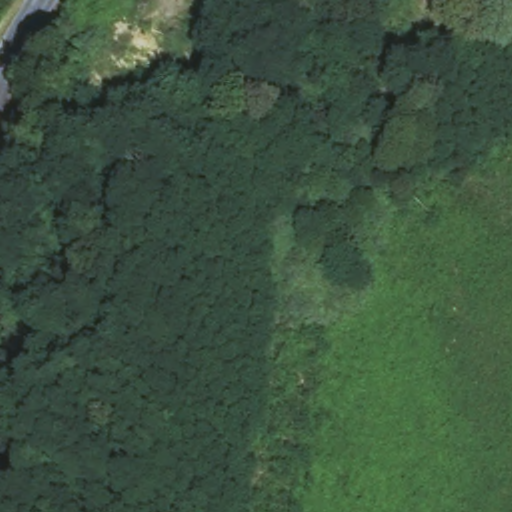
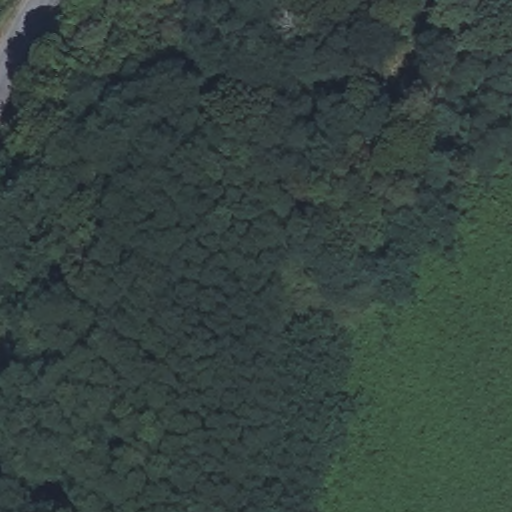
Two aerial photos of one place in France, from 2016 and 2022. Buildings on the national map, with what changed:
unchanged [(233,82),(222,110),(197,99),(208,69),(233,82)]

